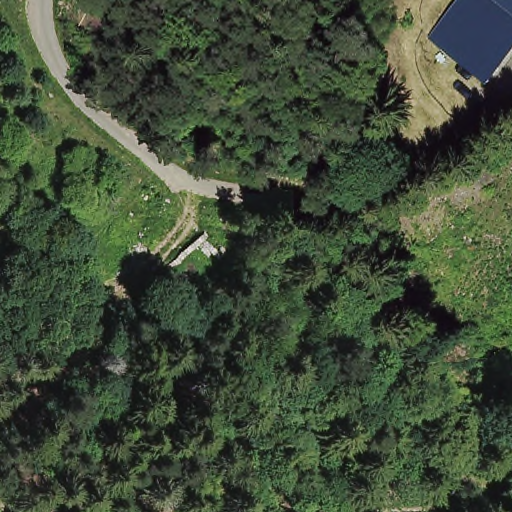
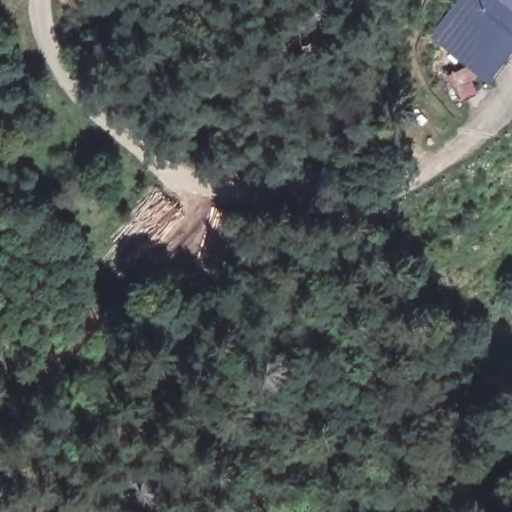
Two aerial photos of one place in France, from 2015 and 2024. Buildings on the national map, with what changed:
unchanged [(441,45),(434,39),(454,11),(461,0),(508,0),(512,3),(512,44),(495,65),(483,80),(478,76),(452,55),(441,45)]
unchanged [(508,0),(512,0),(512,3),(508,0)]

